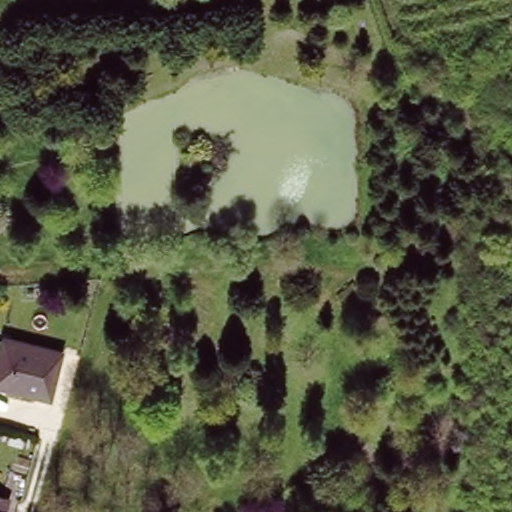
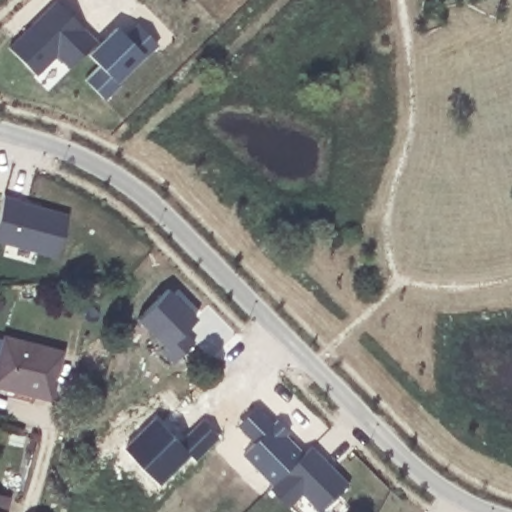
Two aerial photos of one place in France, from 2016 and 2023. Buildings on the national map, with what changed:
new [(55,1),(67,13),(95,41),(67,68),(55,56),(35,75),(7,48),(55,1)]
new [(97,66),(87,55),(115,27),(125,37),(137,25),(156,44),(143,57),(141,55),(115,81),(118,84),(102,99),(84,79),(97,66)]
new [(20,196),(20,199),(70,211),(58,254),(0,238),(0,207),(4,192),(20,196)]
new [(172,282),(200,311),(187,324),(199,335),(177,356),(165,344),(169,340),(141,312),(172,282)]
unchanged [(50,399),(0,387),(0,358),(5,337),(62,351),(50,399)]
new [(255,440),(245,429),(265,410),(275,421),(279,417),(290,429),(287,433),(305,452),(274,483),(243,451),(255,440)]
new [(274,483),(305,452),(313,444),(350,481),(321,510),(303,491),(289,505),(271,486),(274,483)]
unchanged [(4,512),(0,512),(0,496),(7,498),(4,512)]

